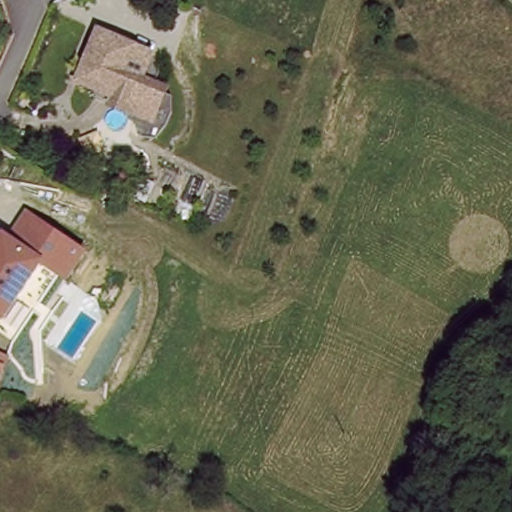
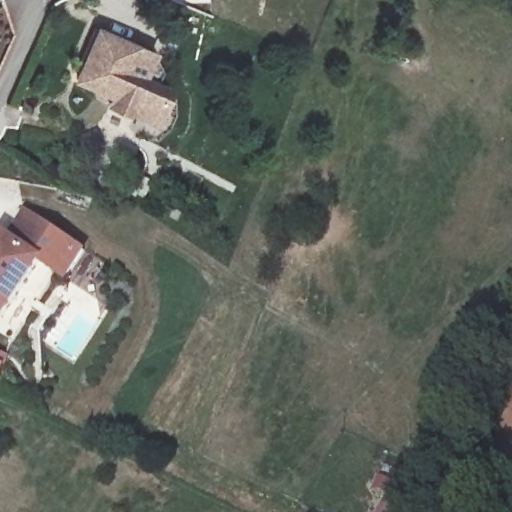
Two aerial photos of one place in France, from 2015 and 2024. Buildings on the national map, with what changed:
unchanged [(148,77),(172,87),(157,126),(106,107),(110,96),(76,81),(98,27),(158,54),(148,77)]
unchanged [(72,286),(47,270),(10,327),(0,320),(0,242),(5,234),(12,238),(26,215),(89,256),(72,286)]
unchanged [(5,375),(0,400),(0,373),(5,375)]

